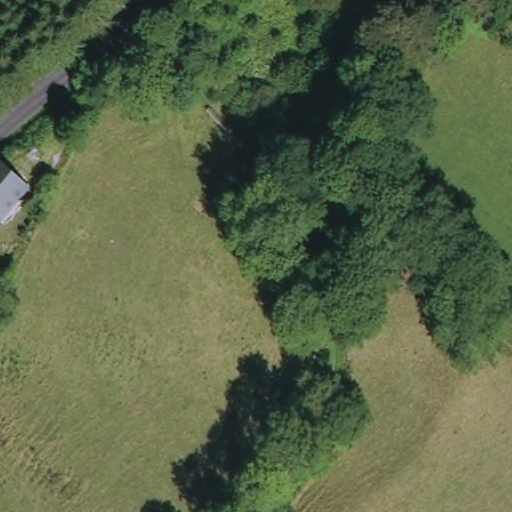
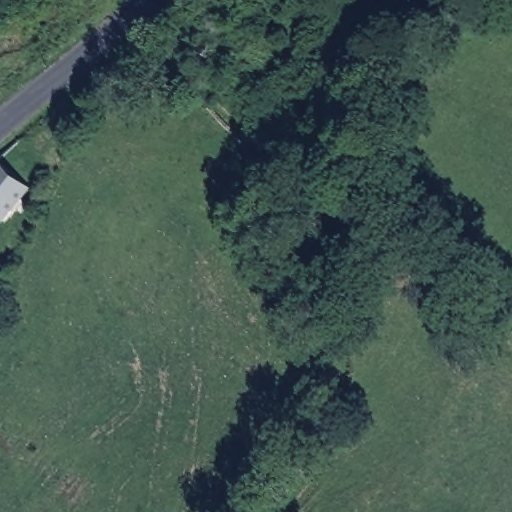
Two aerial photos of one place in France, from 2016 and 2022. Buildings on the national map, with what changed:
unchanged [(1,225),(0,223),(0,174),(9,165),(34,190),(1,225)]

